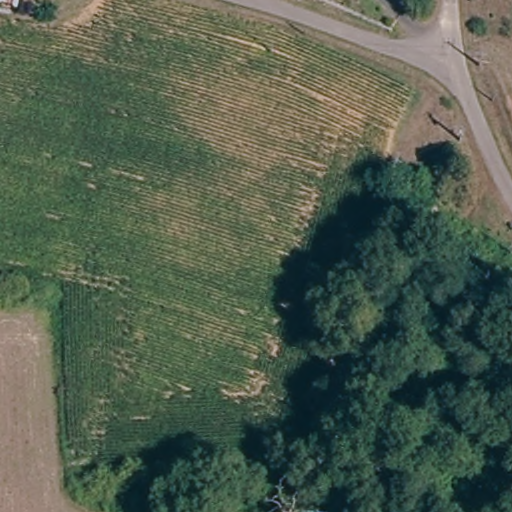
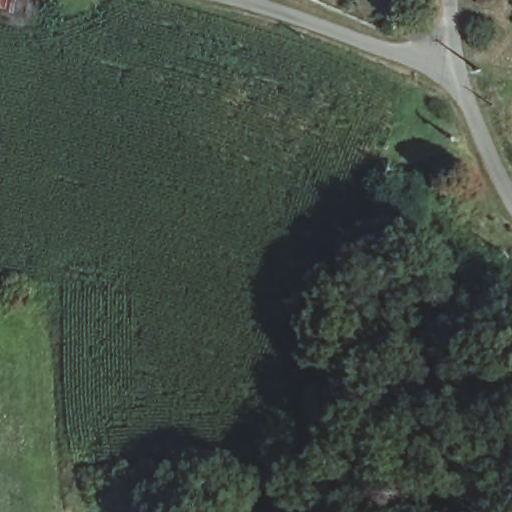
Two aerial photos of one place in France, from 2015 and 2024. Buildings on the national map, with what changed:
unchanged [(6,19),(0,18),(0,0),(20,0),(16,19),(6,19)]
unchanged [(301,0),(306,0),(305,2),(301,0)]
unchanged [(428,156),(422,163),(415,157),(421,150),(428,156)]

